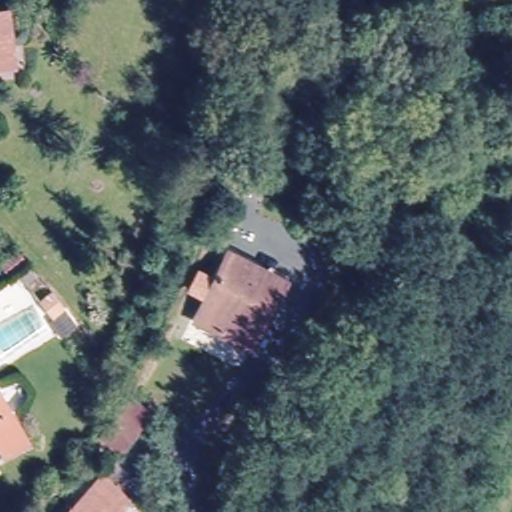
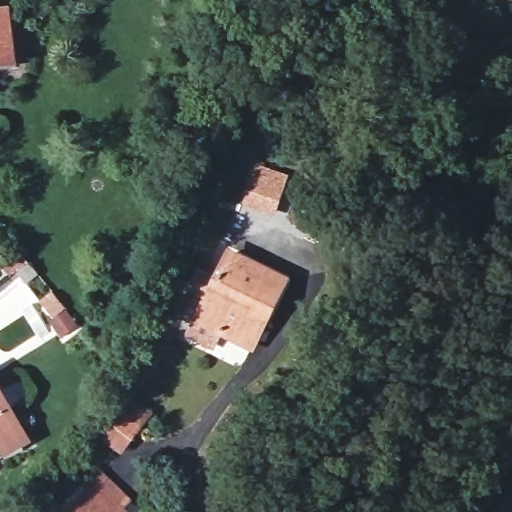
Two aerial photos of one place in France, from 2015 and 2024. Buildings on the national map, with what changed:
unchanged [(7,6),(14,59),(0,61),(0,6),(7,6)]
new [(276,219),(243,208),(258,165),(290,176),(276,219)]
unchanged [(0,264),(19,249),(30,262),(12,278),(0,264)]
unchanged [(197,321),(229,253),(284,278),(267,314),(252,346),(234,338),(197,321)]
unchanged [(29,437),(6,450),(0,438),(0,387),(29,437)]
unchanged [(109,432),(128,407),(146,420),(127,445),(109,432)]
unchanged [(123,504),(115,512),(72,512),(100,483),(123,504)]

